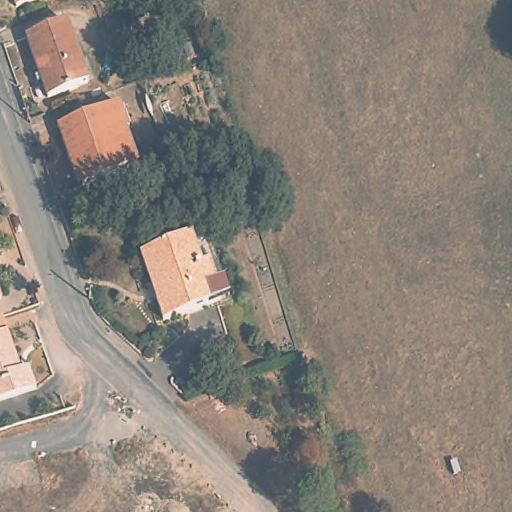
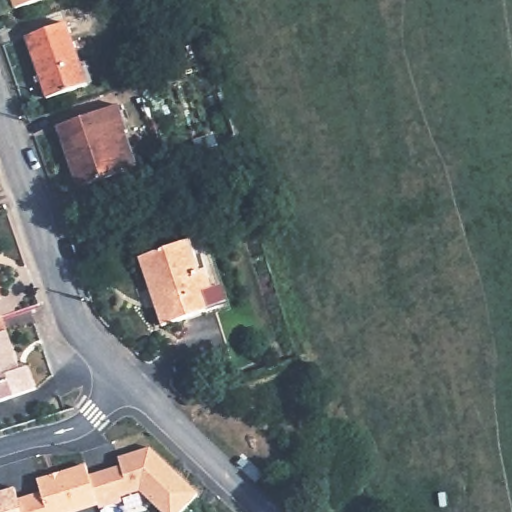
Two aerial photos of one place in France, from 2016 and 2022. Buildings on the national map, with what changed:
unchanged [(15,9),(12,0),(43,0),(15,9)]
unchanged [(65,25),(85,87),(45,100),(25,39),(65,25)]
unchanged [(120,108),(129,134),(117,139),(130,174),(86,189),(76,162),(72,163),(60,128),(120,108)]
unchanged [(141,286),(134,264),(185,246),(183,240),(198,235),(207,262),(147,283),(141,286)]
unchanged [(226,314),(216,317),(214,312),(159,332),(151,311),(156,308),(147,283),(207,262),(226,314)]
unchanged [(0,406),(0,325),(17,376),(25,373),(33,395),(0,406)]
new [(121,465),(119,456),(151,448),(199,494),(183,512),(161,512),(139,492),(100,507),(83,512),(0,512),(0,492),(15,488),(19,499),(42,492),(39,478),(87,465),(90,476),(121,465)]

